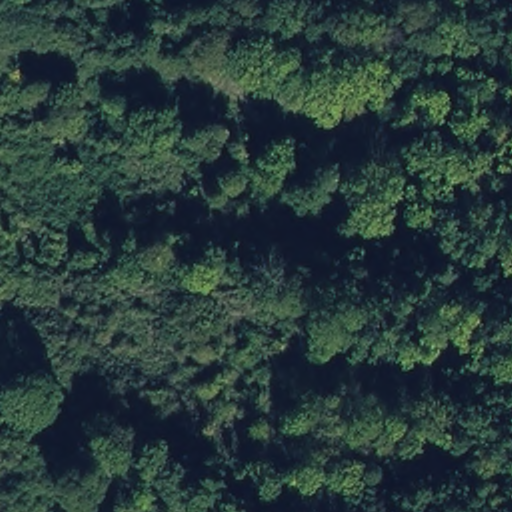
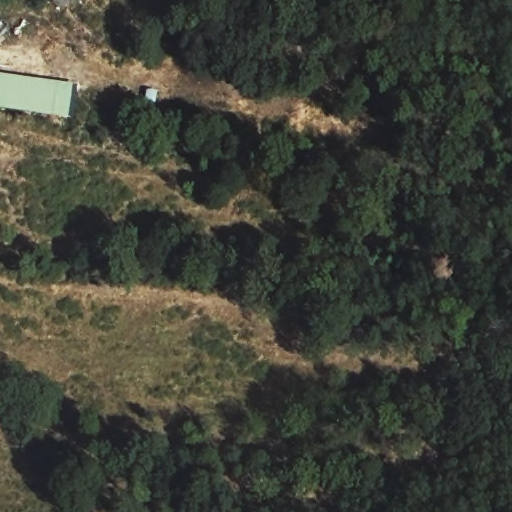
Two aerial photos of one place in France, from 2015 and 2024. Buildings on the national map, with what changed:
new [(54,84),(49,115),(0,108),(0,76),(54,84)]

